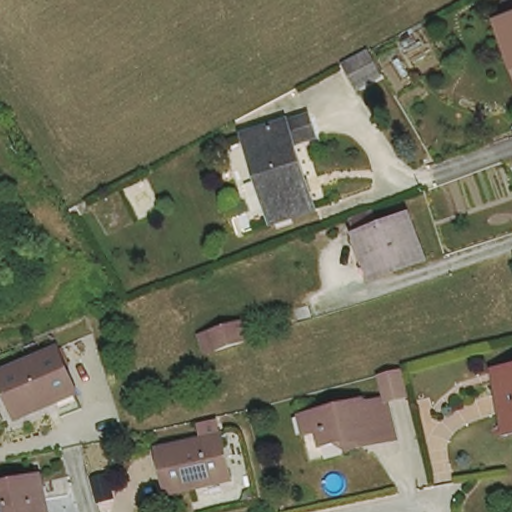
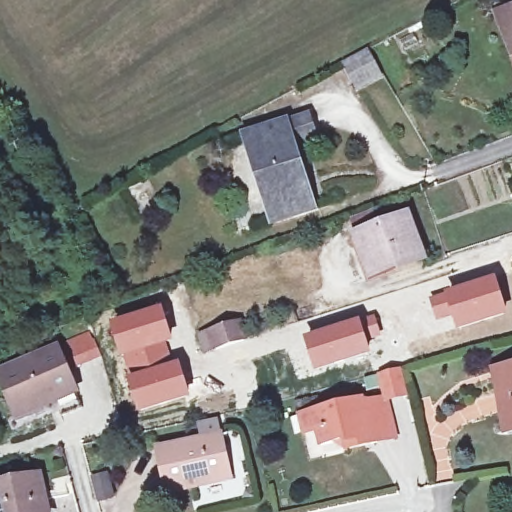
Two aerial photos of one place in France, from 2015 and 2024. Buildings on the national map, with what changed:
unchanged [(502,19),(511,15),(506,2),(512,0),(512,40),(502,19)]
unchanged [(385,72),(359,88),(344,60),(369,47),(385,72)]
unchanged [(314,203),(274,217),(245,131),(308,110),(316,131),(293,139),(314,203)]
unchanged [(409,216),(424,256),(371,275),(357,234),(409,216)]
new [(496,277),(508,316),(457,332),(453,317),(436,322),(428,297),(496,277)]
new [(139,414),(128,377),(122,358),(113,322),(163,307),(173,343),(168,345),(173,362),(179,361),(191,397),(139,414)]
new [(374,315),(381,336),(368,340),(371,355),(315,374),(304,338),(374,315)]
unchanged [(246,340),(217,349),(211,332),(241,323),(246,340)]
unchanged [(61,342),(78,382),(49,396),(51,400),(21,412),(2,368),(61,342)]
unchanged [(504,414),(497,362),(495,352),(509,349),(512,348),(512,413),(504,414)]
unchanged [(402,361),(408,387),(386,393),(379,367),(402,361)]
unchanged [(345,437),(341,434),(321,439),(318,425),(304,427),(300,409),(313,406),(361,393),(362,397),(384,392),(394,432),(371,437),(346,443),(345,437)]
unchanged [(224,430),(233,472),(173,486),(163,444),(224,430)]
unchanged [(48,510),(46,512),(1,512),(0,510),(0,474),(36,466),(48,510)]

